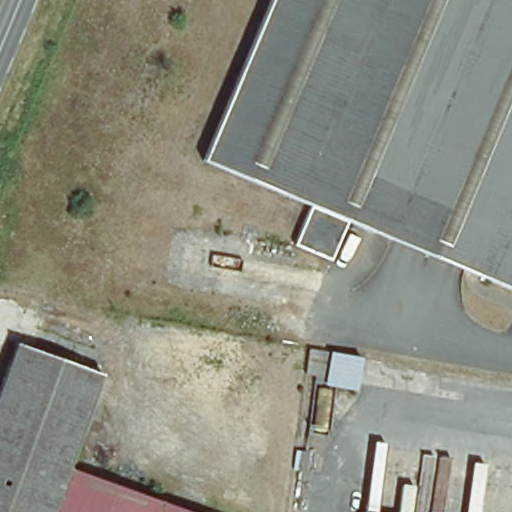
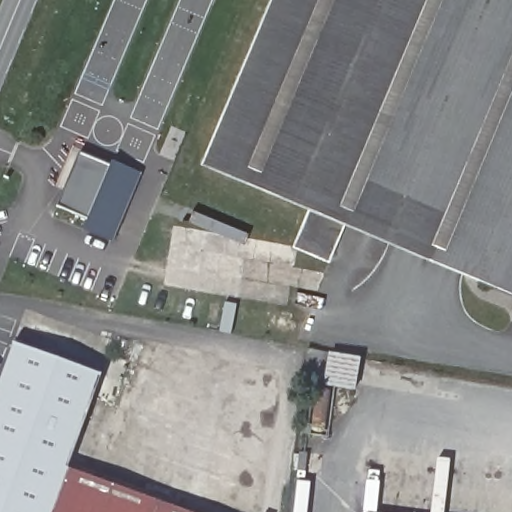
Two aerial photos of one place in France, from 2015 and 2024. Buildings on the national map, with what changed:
unchanged [(328,259),(292,244),(308,205),(200,158),(267,0),(512,0),(512,292),(345,221),(328,259)]
new [(81,158),(109,170),(112,162),(141,174),(112,243),(83,231),(88,220),(60,209),(81,158)]
unchanged [(98,381),(67,467),(188,512),(0,512),(0,377),(11,348),(98,381)]
unchanged [(295,377),(300,355),(345,364),(339,395),(310,389),(312,381),(295,377)]

